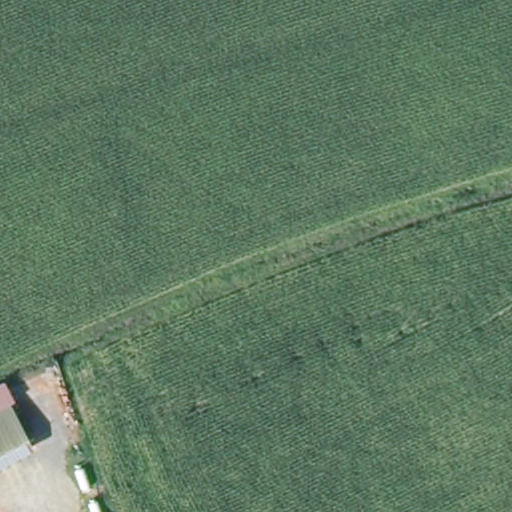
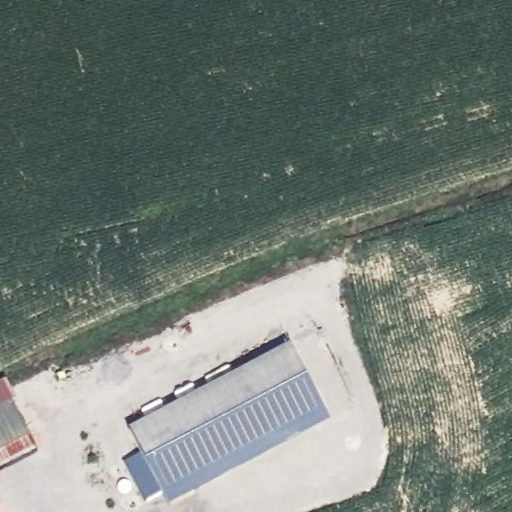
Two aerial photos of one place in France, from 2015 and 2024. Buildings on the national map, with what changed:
new [(331,423),(170,509),(129,432),(290,347),(331,423)]
new [(40,453),(0,473),(0,389),(5,387),(40,453)]
demolished [(39,443),(0,462),(0,405),(16,397),(39,443)]

